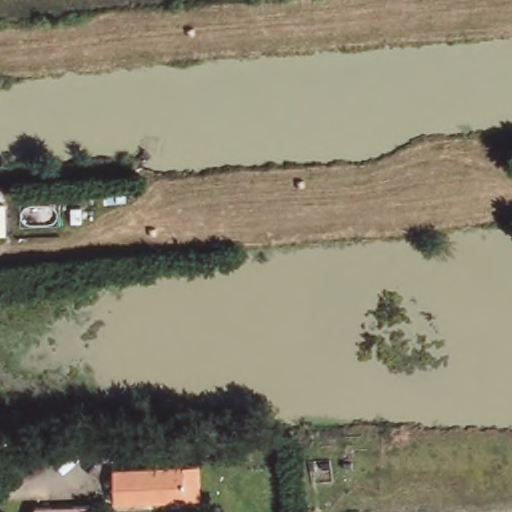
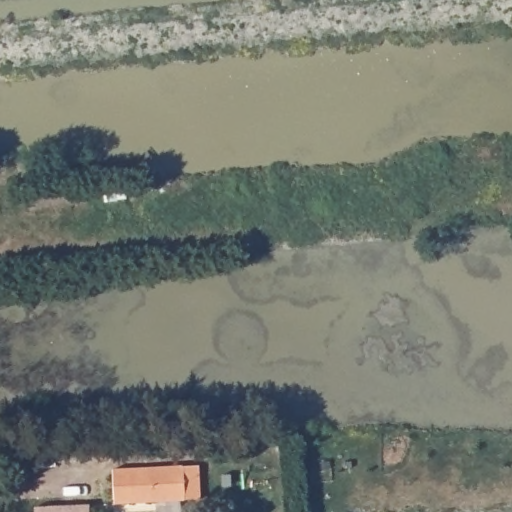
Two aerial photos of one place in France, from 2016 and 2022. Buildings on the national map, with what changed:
unchanged [(194,463),(196,500),(115,508),(111,467),(194,463)]
unchanged [(89,504),(90,512),(34,512),(33,508),(89,504)]

